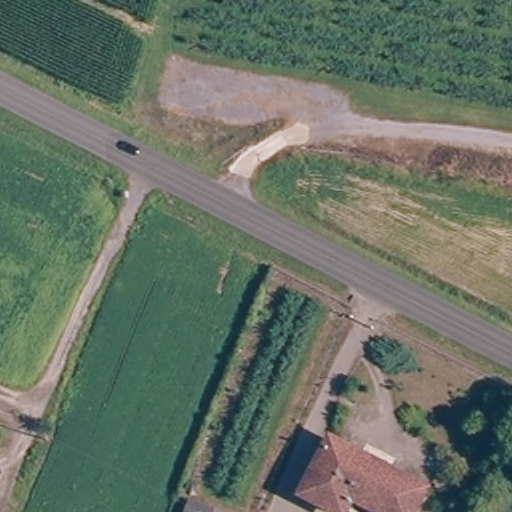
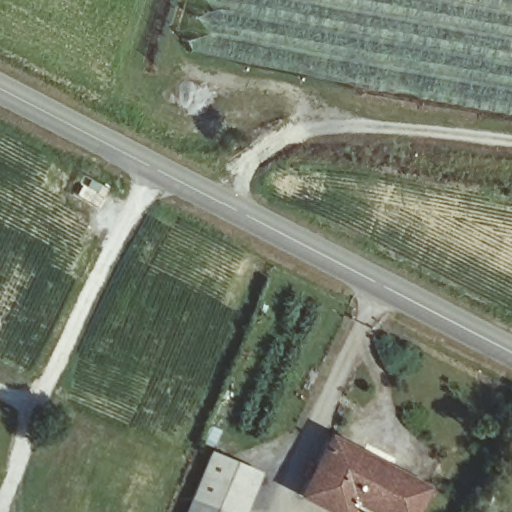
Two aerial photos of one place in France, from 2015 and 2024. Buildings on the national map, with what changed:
unchanged [(425,488),(413,512),(382,512),(350,497),(346,505),(308,488),(330,444),(425,488)]
new [(193,503),(214,452),(262,473),(246,512),(216,512),(193,503)]
unchanged [(216,512),(189,512),(193,503),(216,512)]

